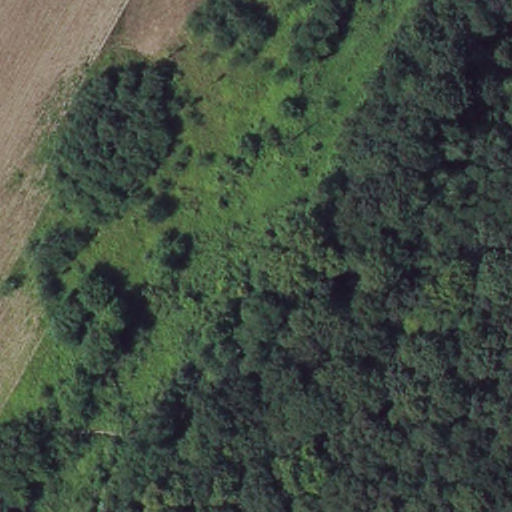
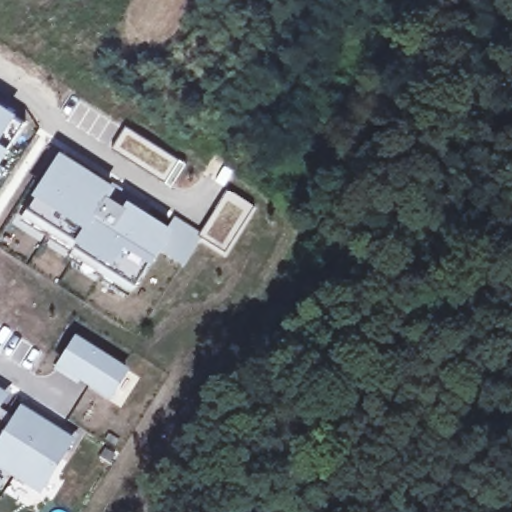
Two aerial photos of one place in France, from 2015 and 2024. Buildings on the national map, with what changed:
new [(17,115),(0,142),(0,104),(17,115)]
new [(185,155),(170,184),(115,147),(130,118),(185,155)]
new [(8,150),(0,163),(0,145),(8,150)]
new [(32,203),(28,200),(56,155),(111,192),(106,205),(120,211),(123,205),(167,231),(177,217),(202,232),(199,238),(183,267),(160,253),(132,298),(70,261),(72,256),(18,220),(32,203)]
new [(253,209),(225,257),(199,238),(228,191),(253,209)]
new [(132,371),(111,406),(54,370),(72,338),(132,371)]
new [(8,396),(0,411),(0,391),(8,396)]
new [(74,441),(42,500),(0,475),(0,438),(19,407),(74,441)]

